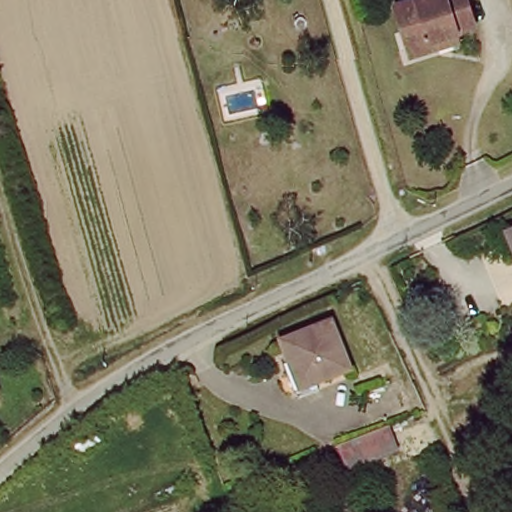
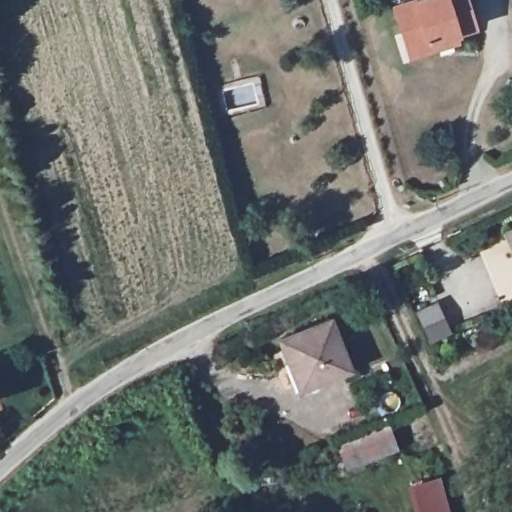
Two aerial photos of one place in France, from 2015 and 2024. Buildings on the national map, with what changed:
unchanged [(471,0),(477,22),(411,41),(399,1),(404,0),(471,0)]
unchanged [(512,229),(512,244),(507,231),(512,229)]
unchanged [(327,325),(352,373),(307,395),(282,348),(327,325)]
unchanged [(391,435),(398,456),(347,476),(339,455),(391,435)]
new [(408,485),(440,477),(449,512),(414,512),(408,485)]

